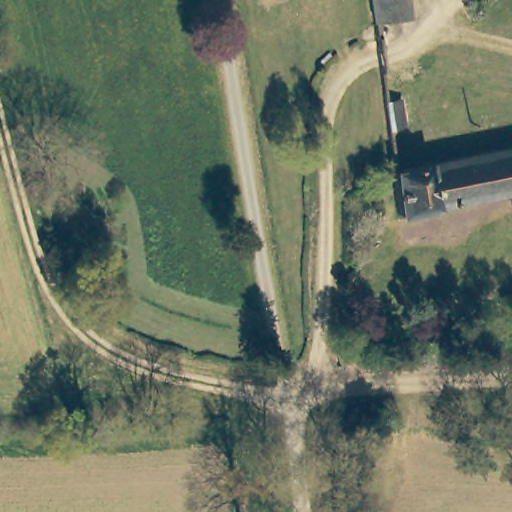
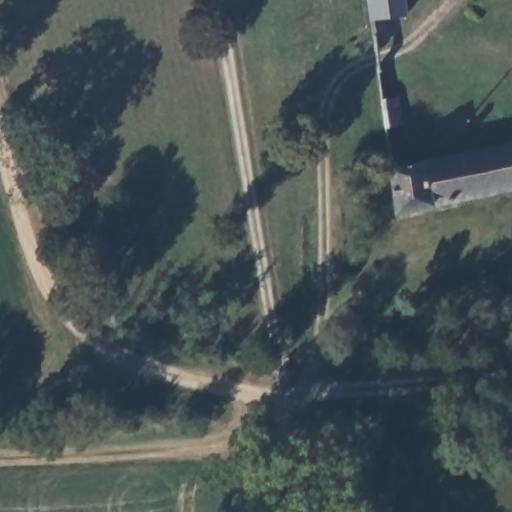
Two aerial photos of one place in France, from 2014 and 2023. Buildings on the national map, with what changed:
unchanged [(403,14),(369,20),(366,0),(402,0),(403,14)]
unchanged [(400,100),(405,129),(388,131),(384,102),(400,100)]
unchanged [(394,212),(388,168),(512,142),(512,187),(394,212)]

